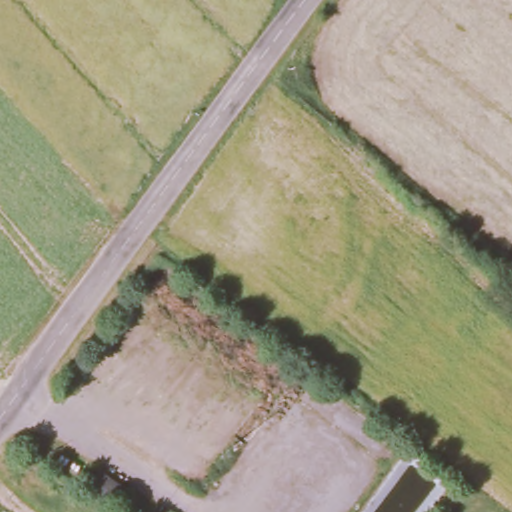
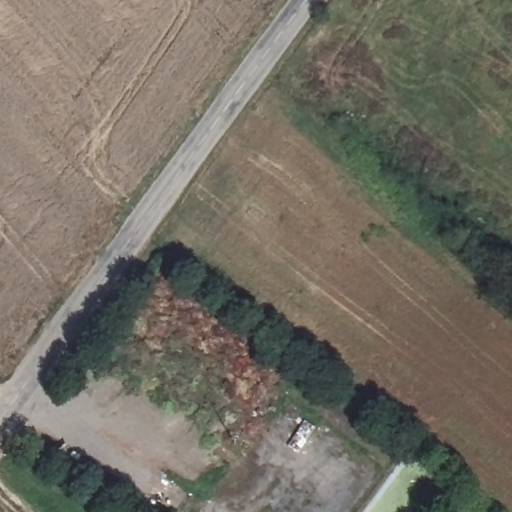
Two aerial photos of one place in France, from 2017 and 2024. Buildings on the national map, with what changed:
unchanged [(117,481),(109,493),(87,480),(95,467),(117,481)]

